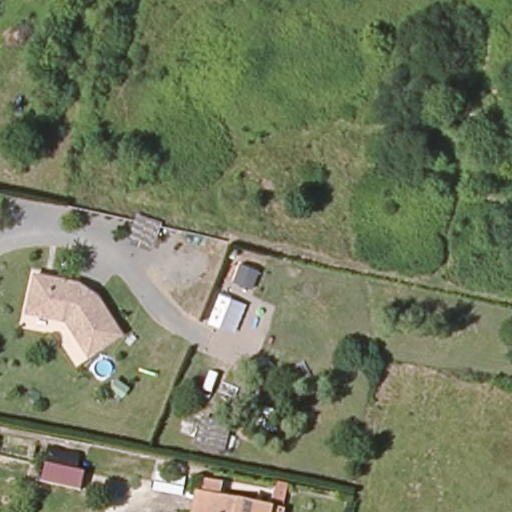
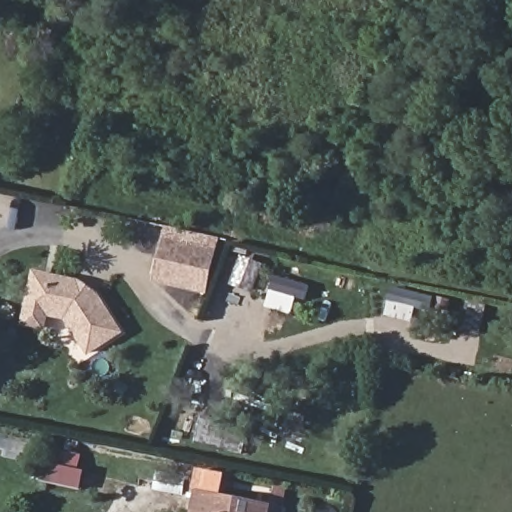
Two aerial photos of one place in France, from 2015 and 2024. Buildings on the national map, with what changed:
new [(165,246),(166,242),(217,253),(208,294),(154,282),(163,245),(165,246)]
unchanged [(34,281),(35,272),(79,280),(95,291),(97,294),(120,329),(89,349),(67,315),(29,308),(34,281)]
unchanged [(291,481),(291,482),(287,503),(277,501),(280,479),(291,481)]
unchanged [(282,512),(197,512),(205,480),(226,486),(223,499),(269,508),(283,511),(282,512)]

